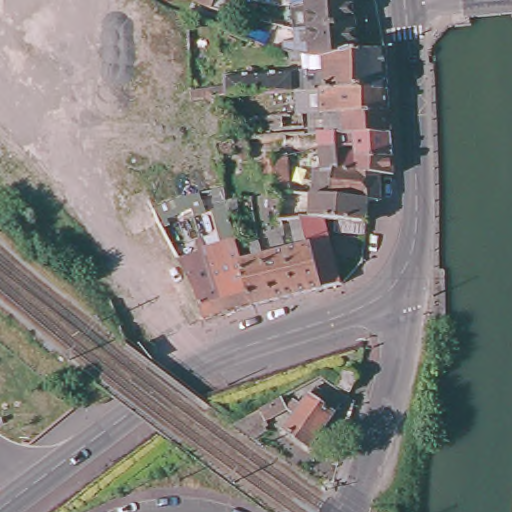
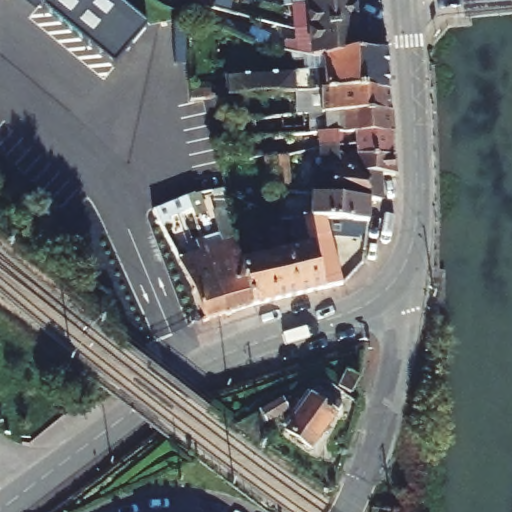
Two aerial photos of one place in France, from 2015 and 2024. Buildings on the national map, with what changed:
new [(145,27),(114,66),(42,7),(35,0),(113,0),(145,27)]
unchanged [(209,5),(200,0),(212,0),(209,5)]
unchanged [(351,7),(290,11),(289,0),(351,0),(351,7)]
demolished [(185,23),(185,11),(185,3),(222,21),(222,32),(186,32),(185,23)]
unchanged [(290,11),(351,7),(353,33),(291,36),(290,11)]
unchanged [(232,26),(237,14),(268,30),(262,41),(232,26)]
unchanged [(292,57),(291,36),(353,33),(356,59),(355,59),(307,61),(292,57)]
unchanged [(355,59),(356,59),(383,58),(386,95),(299,97),(236,99),(235,79),(305,76),(303,65),(287,66),(287,56),(288,57),(292,57),(307,61),(355,59)]
unchanged [(247,163),(245,146),(255,144),(253,122),(280,120),(300,120),(299,97),(386,95),(388,118),(390,140),(319,139),(285,142),(285,161),(287,178),(289,197),(266,193),(265,179),(262,162),(247,163)]
demolished [(217,138),(232,137),(235,153),(218,154),(217,138)]
unchanged [(378,178),(378,192),(315,188),(307,185),(310,174),(321,176),(320,149),(319,139),(390,140),(392,165),(394,181),(378,178)]
unchanged [(221,179),(224,194),(190,204),(190,201),(158,212),(152,201),(185,187),(221,179)]
unchanged [(378,192),(379,208),(367,209),(311,200),(305,199),(307,185),(315,188),(378,192)]
unchanged [(320,223),(306,222),(311,200),(367,209),(366,229),(320,223)]
unchanged [(242,240),(231,243),(228,230),(225,207),(235,207),(242,240)]
unchanged [(265,224),(265,207),(274,207),(278,226),(265,224)]
unchanged [(310,248),(305,249),(304,243),(282,249),(261,255),(259,248),(281,241),(278,226),(298,223),(306,222),(320,223),(338,289),(322,294),(310,248)]
unchanged [(201,320),(191,289),(178,263),(197,256),(193,245),(200,243),(206,264),(225,322),(204,328),(201,320)]
unchanged [(251,313),(225,322),(206,264),(217,261),(220,270),(225,269),(223,261),(227,260),(225,250),(233,248),(238,267),(251,313)]
unchanged [(305,249),(310,248),(322,294),(296,301),(284,255),(305,249)]
unchanged [(262,261),(284,255),(296,301),(274,307),(262,261)]
unchanged [(262,261),(274,307),(251,313),(238,267),(262,261)]
unchanged [(345,366),(355,372),(347,386),(337,380),(345,366)]
unchanged [(307,460),(282,442),(293,428),(286,422),(295,411),(302,417),(316,398),(340,417),(307,460)]
unchanged [(259,421),(282,409),(286,422),(265,433),(259,421)]

